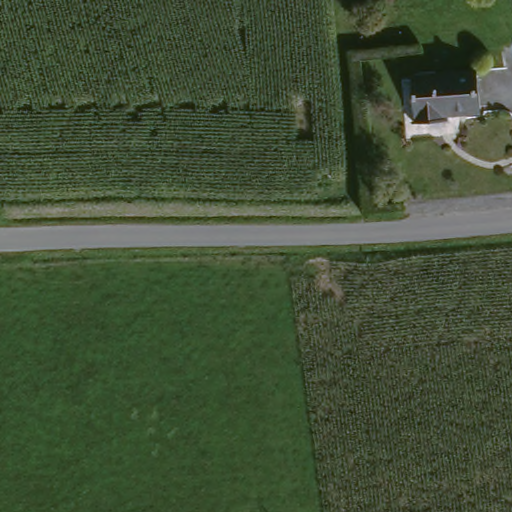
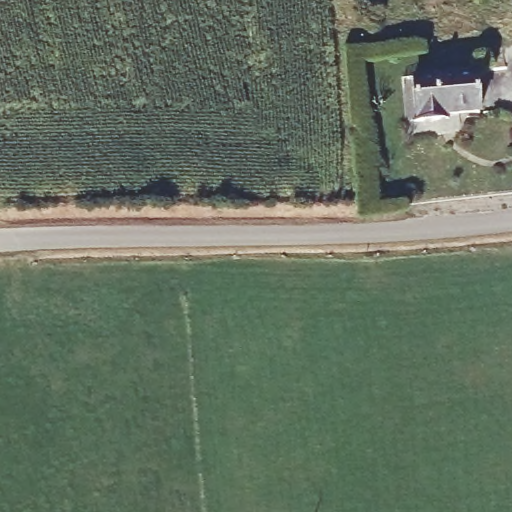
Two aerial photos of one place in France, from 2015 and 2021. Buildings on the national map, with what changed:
unchanged [(425,69),(485,68),(487,107),(447,109),(447,115),(427,115),(425,69)]

